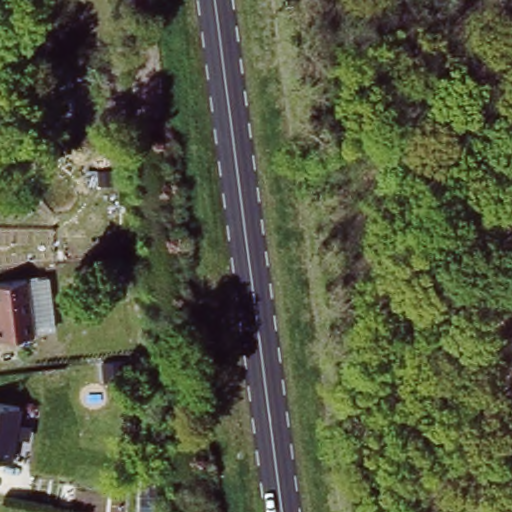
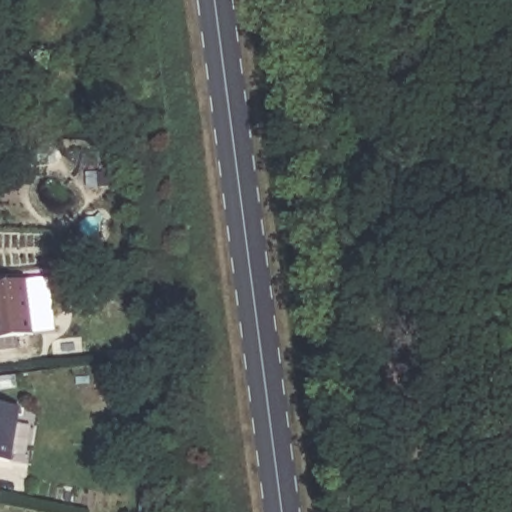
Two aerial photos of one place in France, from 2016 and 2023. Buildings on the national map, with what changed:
unchanged [(27,278),(34,332),(0,337),(0,282),(27,278)]
unchanged [(21,407),(9,461),(0,459),(0,403),(21,407)]

